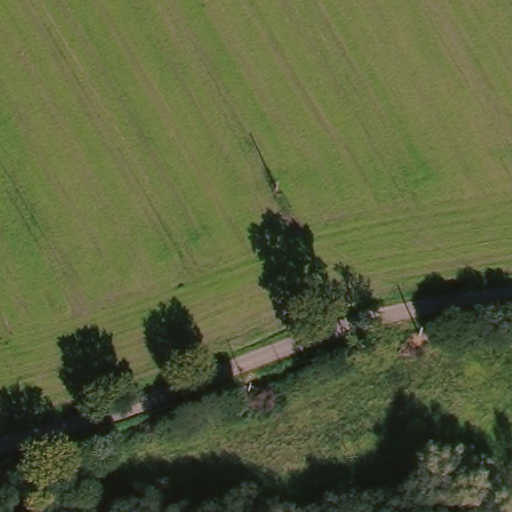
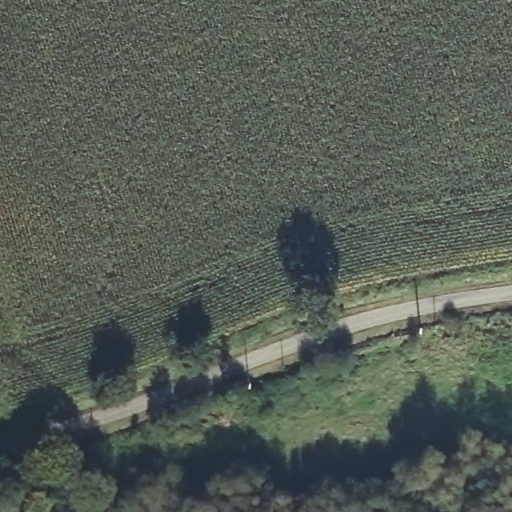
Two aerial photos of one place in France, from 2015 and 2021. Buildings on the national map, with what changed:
[]

